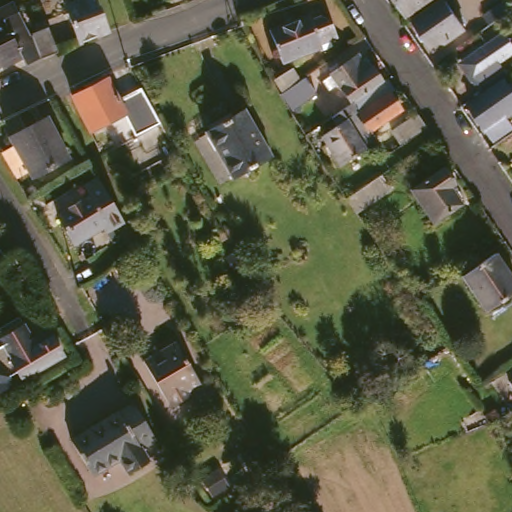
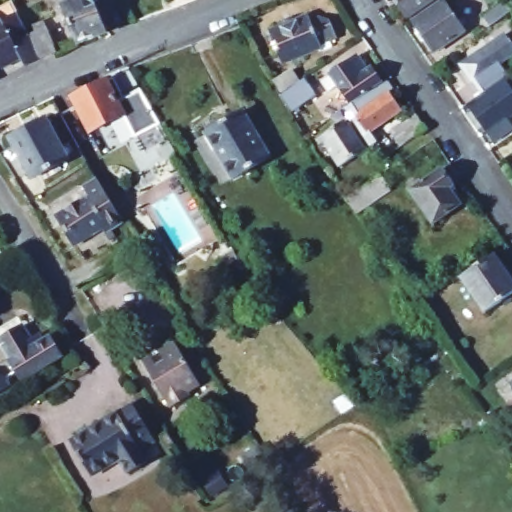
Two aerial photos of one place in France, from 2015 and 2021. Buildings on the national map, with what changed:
unchanged [(78,44),(62,0),(94,0),(106,32),(78,44)]
unchanged [(433,0),(413,15),(402,0),(433,0)]
unchanged [(450,0),(471,29),(440,50),(419,20),(449,0),(450,0)]
unchanged [(24,11),(34,36),(35,37),(39,36),(38,29),(50,25),(52,32),(61,55),(46,61),(45,62),(26,70),(25,66),(9,74),(8,71),(0,75),(0,10),(20,1),(24,11)]
unchanged [(511,5),(512,8),(512,17),(496,29),(490,19),(511,5)]
unchanged [(291,20),(289,15),(294,13),(295,18),(312,12),(315,19),(322,16),(336,21),(339,35),(322,41),(323,45),(285,58),(273,26),(291,20)]
unchanged [(462,60),(474,50),(491,39),(505,29),(510,35),(512,39),(512,47),(500,56),(509,70),(483,88),(473,74),(467,65),(462,60)]
unchanged [(337,80),(334,75),(344,69),(368,55),(388,85),(357,104),(354,105),(344,89),(333,95),(327,85),(337,80)]
unchanged [(483,93),(508,75),(512,81),(512,106),(508,110),(512,116),(512,123),(496,134),(472,100),(483,93)]
unchanged [(308,77),(319,95),(296,109),(285,91),(308,77)]
unchanged [(161,124),(136,136),(128,115),(93,131),(74,97),(78,95),(80,94),(83,93),(80,89),(98,80),(100,84),(103,82),(106,81),(109,80),(121,100),(141,90),(161,124)]
unchanged [(394,81),(401,91),(396,95),(407,113),(374,132),(379,141),(369,146),(357,127),(365,124),(359,115),(362,112),(357,104),(388,85),(394,81)]
unchanged [(372,150),(343,166),(328,140),(326,136),(342,128),(336,117),(347,110),(357,127),(369,146),(372,150)]
unchanged [(244,115),(251,111),(277,159),(236,182),(209,134),(244,115)]
unchanged [(51,116),(76,162),(39,180),(15,135),(51,116)]
unchanged [(412,124),(423,117),(433,130),(405,147),(397,133),(412,124)]
unchanged [(439,175),(447,171),(458,186),(454,189),(465,206),(437,224),(415,190),(439,175)]
unchanged [(383,176),(392,190),(357,212),(355,207),(348,198),(383,176)]
unchanged [(129,226),(111,236),(108,231),(79,248),(63,217),(92,200),(96,199),(90,188),(104,180),(124,217),(129,226)]
unchanged [(472,276),(500,258),(501,257),(512,272),(512,302),(490,315),(467,280),(472,276)]
unchanged [(26,321),(42,347),(43,346),(60,336),(71,355),(28,380),(1,336),(26,321)]
unchanged [(155,352),(162,364),(170,359),(163,347),(168,345),(179,338),(206,382),(194,390),(196,395),(176,407),(145,358),(155,352)]
unchanged [(509,378),(512,376),(512,382),(509,378)]
unchanged [(83,436),(141,402),(165,440),(150,448),(156,460),(136,472),(128,458),(101,473),(79,438),(83,436)]
unchanged [(258,475),(250,461),(267,451),(272,459),(276,465),(258,475)]

